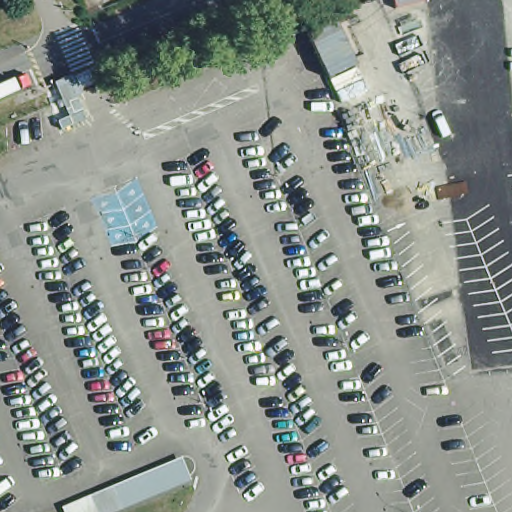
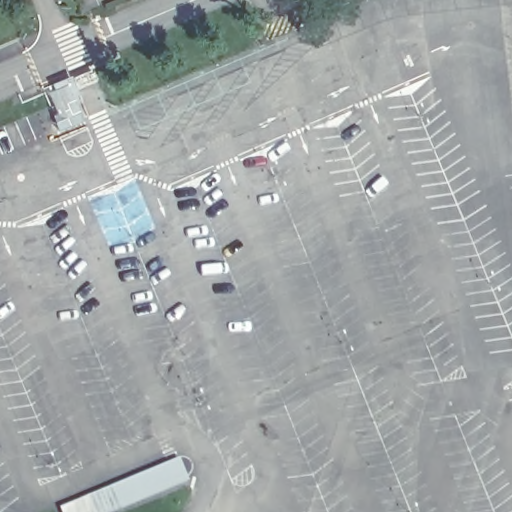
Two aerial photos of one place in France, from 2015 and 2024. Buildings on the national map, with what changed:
unchanged [(63,126),(51,94),(64,88),(69,86),(76,103),(71,105),(78,119),(63,126)]
unchanged [(178,458),(189,481),(115,512),(61,512),(59,508),(178,458)]

